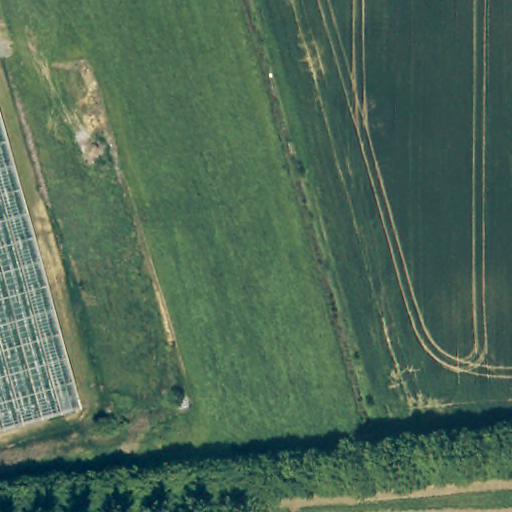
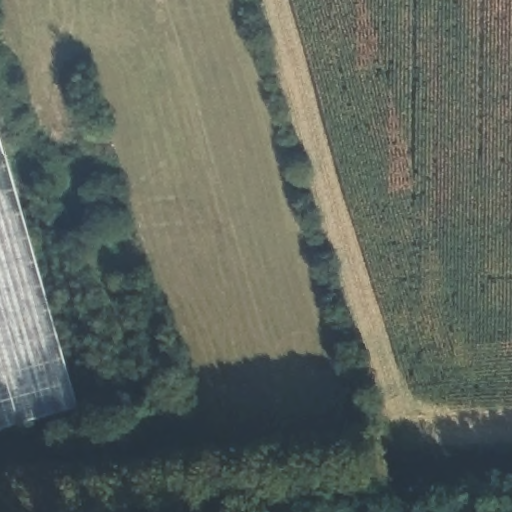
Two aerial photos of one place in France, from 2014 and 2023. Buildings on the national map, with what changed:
unchanged [(74,409),(0,430),(0,144),(74,409)]

